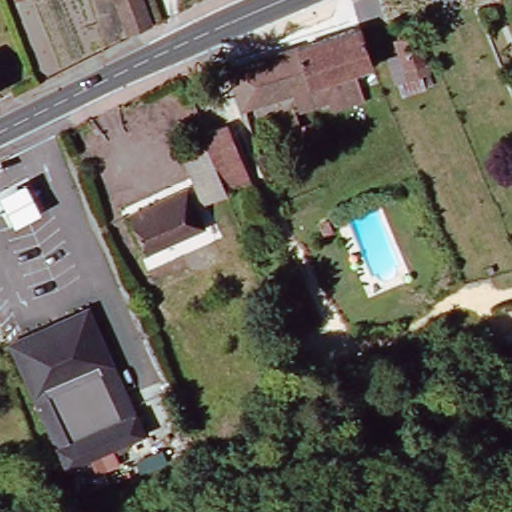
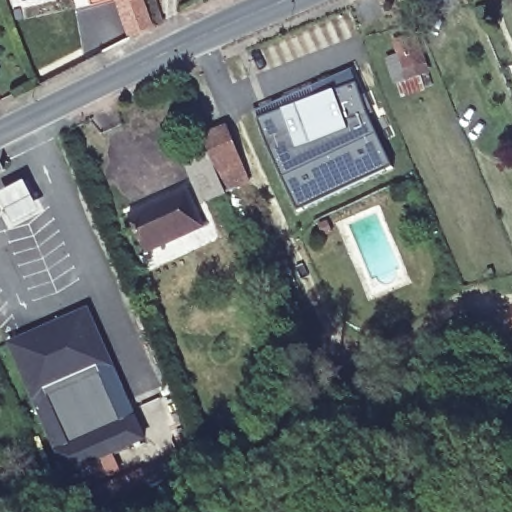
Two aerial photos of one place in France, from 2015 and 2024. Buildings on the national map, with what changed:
unchanged [(34,1),(31,2),(30,0),(34,0),(34,1)]
unchanged [(119,37),(107,0),(134,0),(144,28),(119,37)]
demolished [(354,25),(357,34),(367,64),(349,70),(355,86),(308,102),(302,85),(239,106),(226,68),(354,25)]
unchanged [(409,39),(417,66),(401,71),(393,45),(409,39)]
new [(310,101),(308,96),(354,78),(394,170),(297,213),(258,121),(310,101)]
demolished [(282,139),(278,128),(276,123),(291,118),(293,123),(296,134),(282,139)]
unchanged [(223,197),(201,141),(224,131),(247,188),(223,197)]
unchanged [(136,253),(123,216),(181,193),(195,231),(136,253)]
unchanged [(6,348),(84,314),(134,429),(141,444),(63,479),(6,348)]
unchanged [(509,314),(512,314),(512,324),(509,315),(509,314)]

